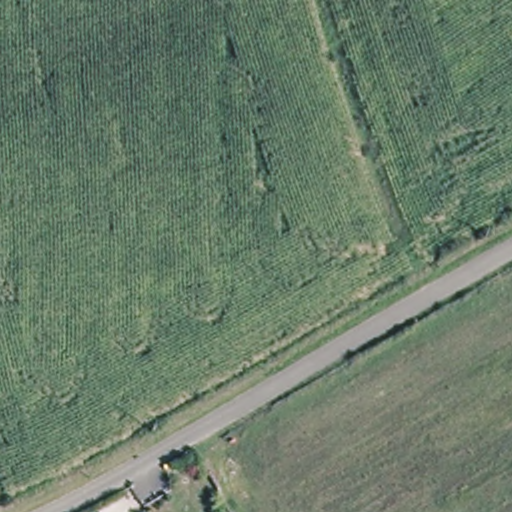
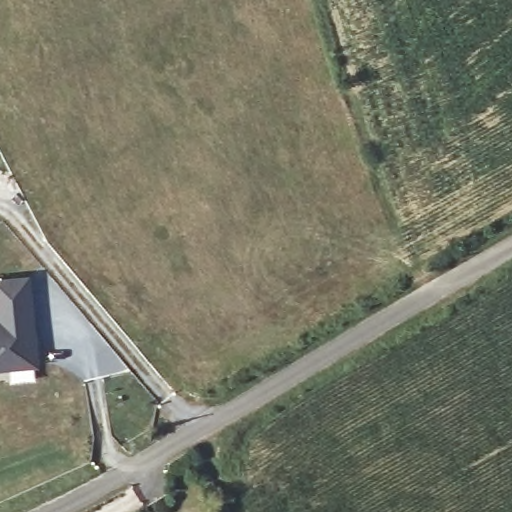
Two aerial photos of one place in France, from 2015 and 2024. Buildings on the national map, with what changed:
new [(30,276),(39,367),(0,371),(0,279),(30,276)]

